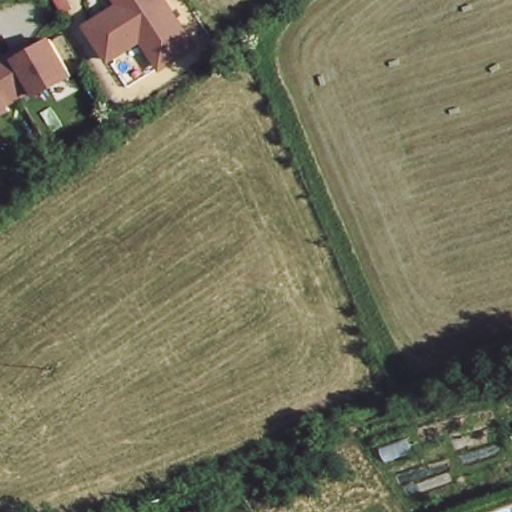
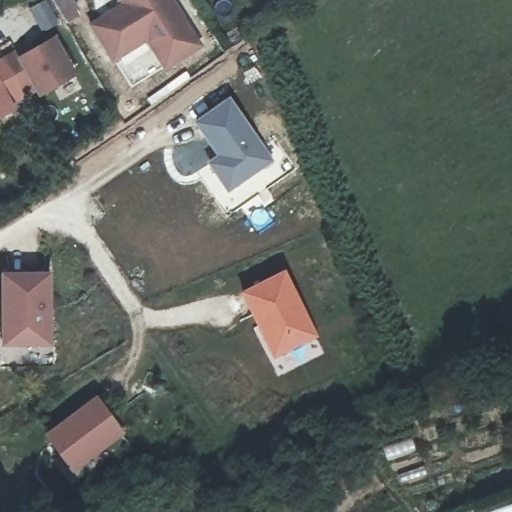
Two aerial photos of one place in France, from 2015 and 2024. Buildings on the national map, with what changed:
unchanged [(120,0),(174,0),(201,45),(163,70),(146,42),(112,64),(87,25),(121,1),(120,0)]
unchanged [(31,40),(36,48),(54,37),(76,75),(0,119),(0,57),(31,40)]
new [(274,164),(227,195),(205,164),(215,157),(192,123),(229,99),(274,164)]
new [(285,268),(320,336),(273,360),(239,292),(285,268)]
new [(53,272),(53,347),(3,347),(3,271),(53,272)]
new [(98,395),(126,435),(73,473),(46,435),(98,395)]

